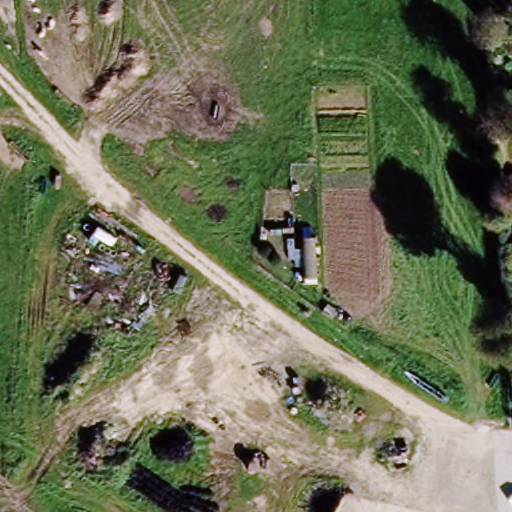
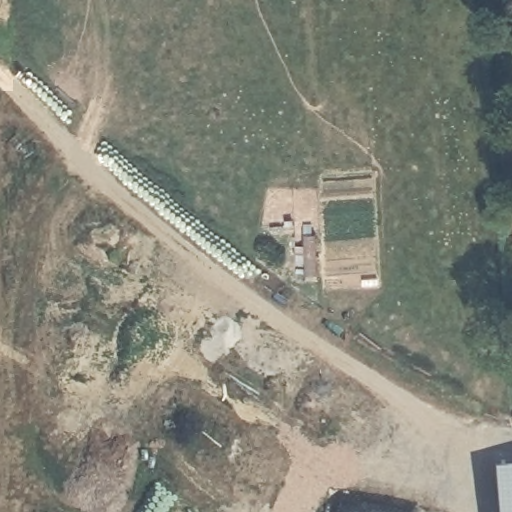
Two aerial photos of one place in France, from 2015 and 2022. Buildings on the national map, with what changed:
new [(498,467),(512,466),(512,512),(501,512),(498,467)]

